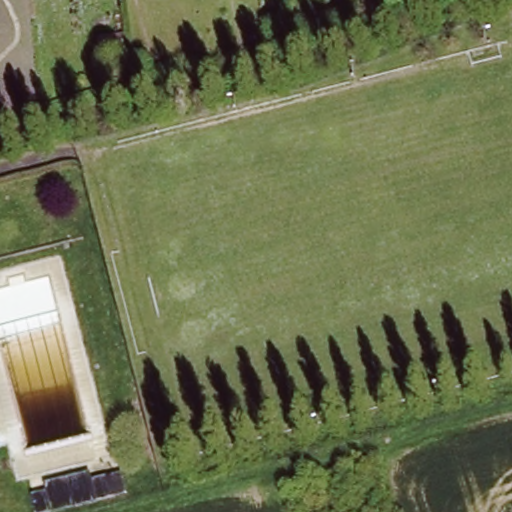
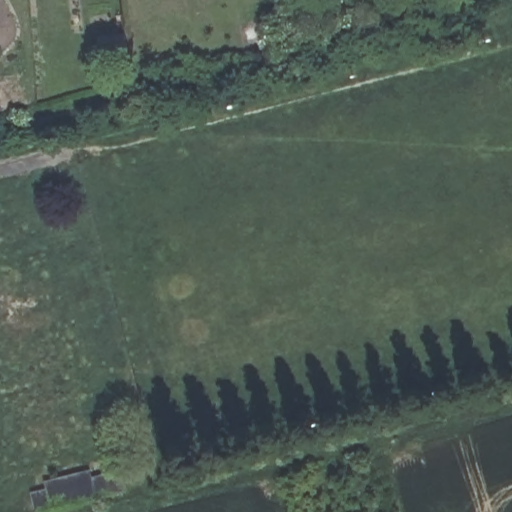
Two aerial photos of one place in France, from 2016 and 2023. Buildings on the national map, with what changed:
unchanged [(336,34),(316,42),(311,31),(331,23),(336,34)]
unchanged [(99,58),(98,40),(123,37),(125,56),(99,58)]
unchanged [(45,494),(62,490),(60,481),(101,471),(103,479),(118,476),(123,496),(108,500),(68,510),(62,512),(50,512),(45,494)]

